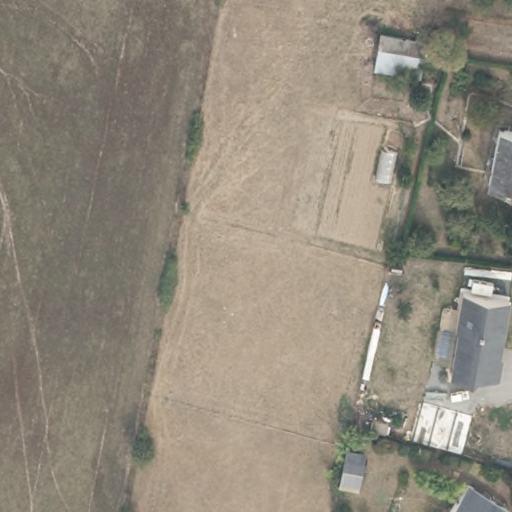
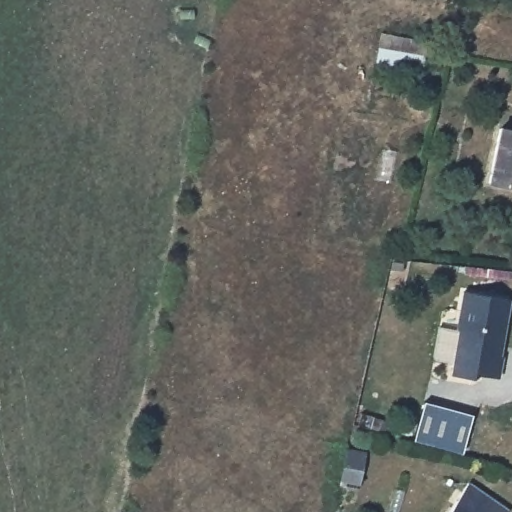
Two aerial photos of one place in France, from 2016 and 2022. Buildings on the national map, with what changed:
unchanged [(380,30),(427,39),(422,81),(372,71),(380,30)]
unchanged [(502,126),(512,128),(512,184),(490,180),(502,126)]
unchanged [(497,359),(501,359),(496,381),(475,377),(470,381),(449,377),(457,333),(456,331),(463,295),(507,302),(499,350),(497,359)]
new [(423,401),(472,414),(461,453),(412,441),(423,401)]
unchanged [(470,480),(510,507),(506,512),(448,512),(470,480)]

